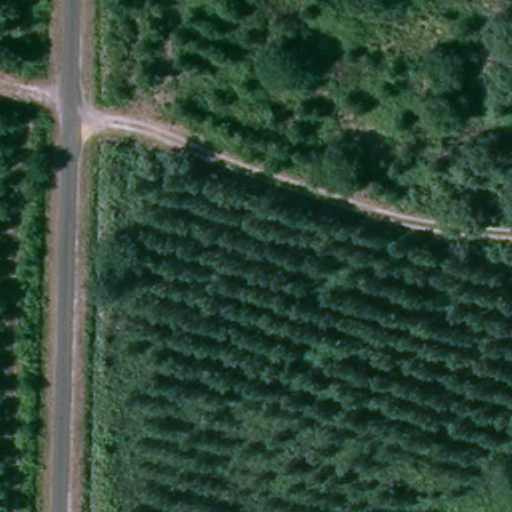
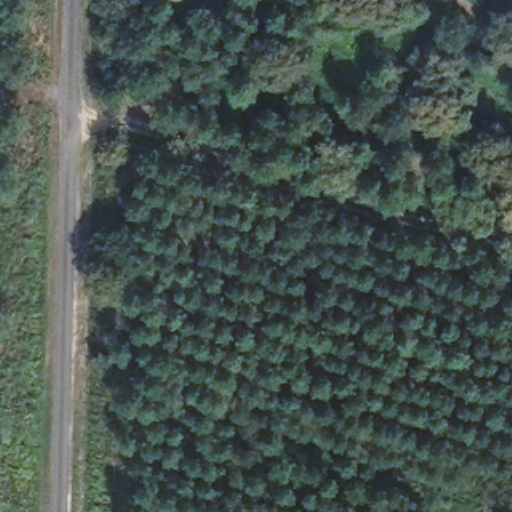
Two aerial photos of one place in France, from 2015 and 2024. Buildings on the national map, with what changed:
[]

